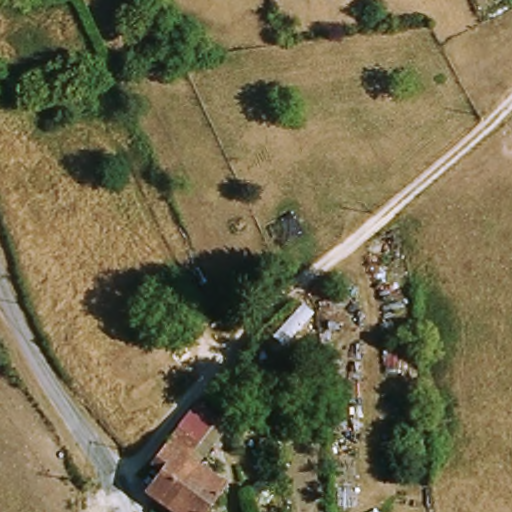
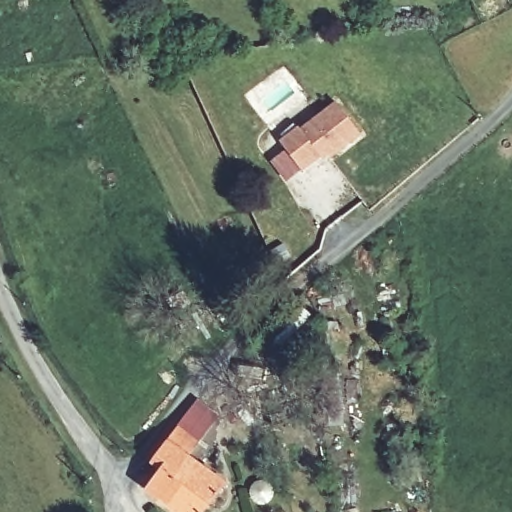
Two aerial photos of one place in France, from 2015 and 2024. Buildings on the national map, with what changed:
new [(286,142),(339,101),(366,135),(334,157),(331,152),(306,170),(293,181),(278,161),(292,150),(286,142)]
unchanged [(232,482),(209,512),(177,512),(148,492),(164,471),(156,465),(201,405),(224,416),(196,456),(232,482)]

